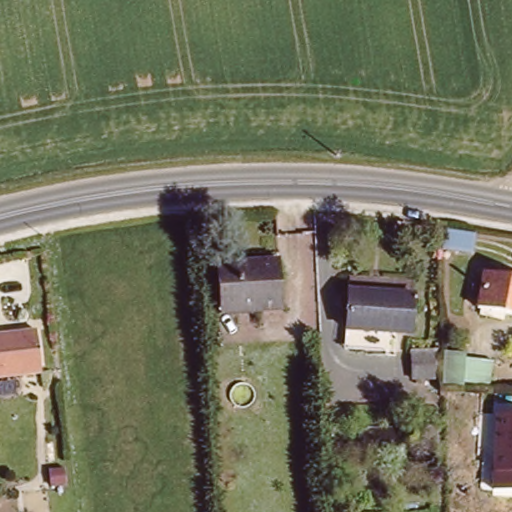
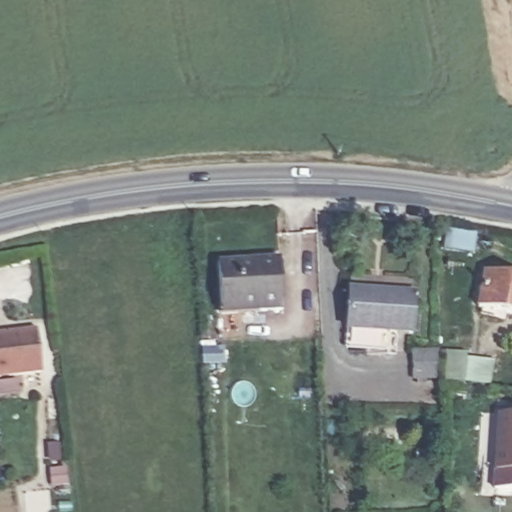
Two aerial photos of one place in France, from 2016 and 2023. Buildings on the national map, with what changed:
unchanged [(276,309),(216,311),(214,261),(274,259),(276,309)]
unchanged [(468,307),(475,270),(512,277),(512,316),(468,307)]
unchanged [(405,295),(405,333),(339,331),(340,292),(405,295)]
unchanged [(42,378),(0,380),(0,333),(37,331),(42,378)]
unchanged [(413,346),(467,351),(467,354),(495,358),(493,383),(443,382),(442,378),(413,379),(413,346)]
unchanged [(512,411),(512,488),(496,488),(500,411),(512,411)]

